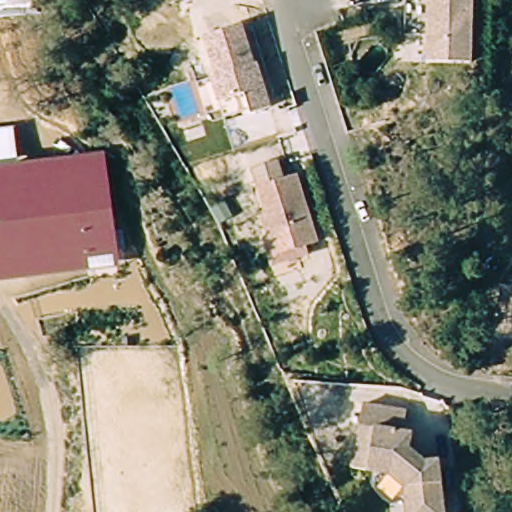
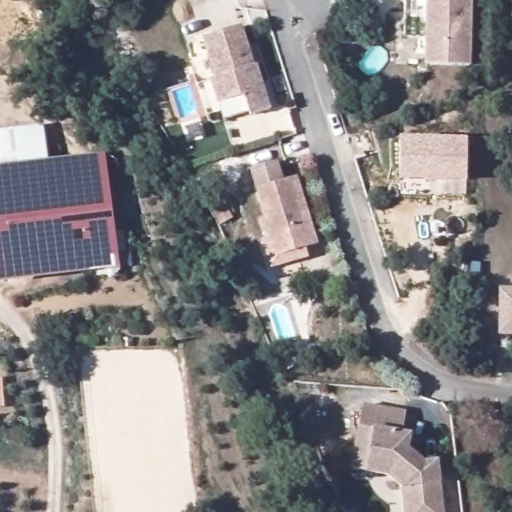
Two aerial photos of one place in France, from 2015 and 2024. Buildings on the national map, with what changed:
unchanged [(434,68),(433,41),(410,42),(409,0),(475,0),(477,66),(434,68)]
unchanged [(248,23),(261,63),(263,62),(278,105),(258,112),(257,109),(251,92),(226,100),(218,76),(224,75),(211,35),(248,23)]
unchanged [(0,163),(0,134),(18,133),(18,162),(0,163)]
new [(468,139),(467,182),(400,180),(400,139),(468,139)]
unchanged [(107,155),(108,173),(0,181),(0,163),(107,155)]
unchanged [(255,170),(281,163),(286,182),(300,178),(320,245),(309,249),(311,258),(275,268),(267,240),(271,239),(265,220),(269,219),(255,170)]
unchanged [(108,173),(115,254),(0,263),(0,181),(108,173)]
unchanged [(115,254),(116,269),(0,279),(0,263),(115,254)]
unchanged [(505,288),(512,288),(512,332),(503,332),(505,288)]
unchanged [(409,414),(406,436),(415,437),(413,452),(430,464),(442,462),(450,512),(413,512),(410,489),(395,478),(376,475),(358,473),(365,409),(409,414)]

